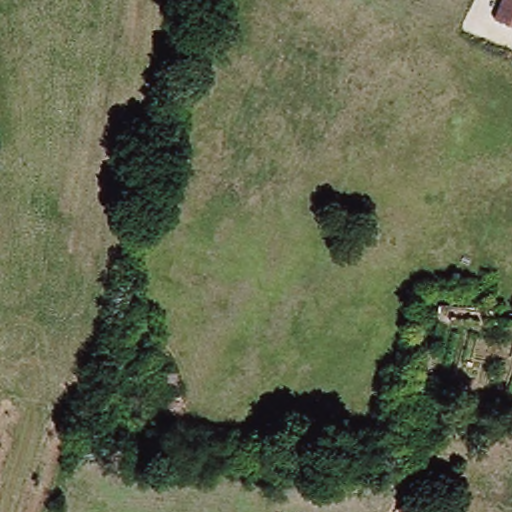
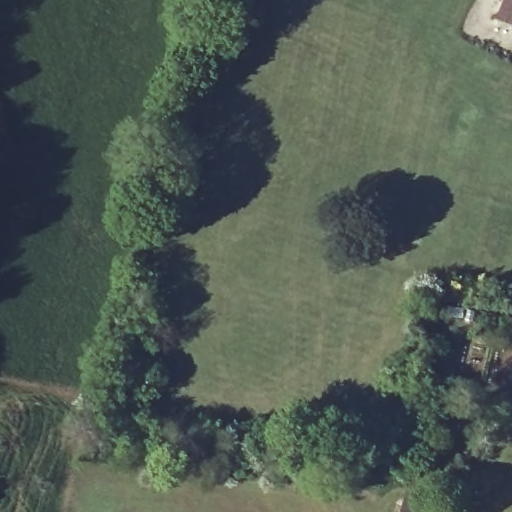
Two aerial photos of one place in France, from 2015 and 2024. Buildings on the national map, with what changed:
unchanged [(497,20),(506,0),(512,0),(512,27),(497,20)]

